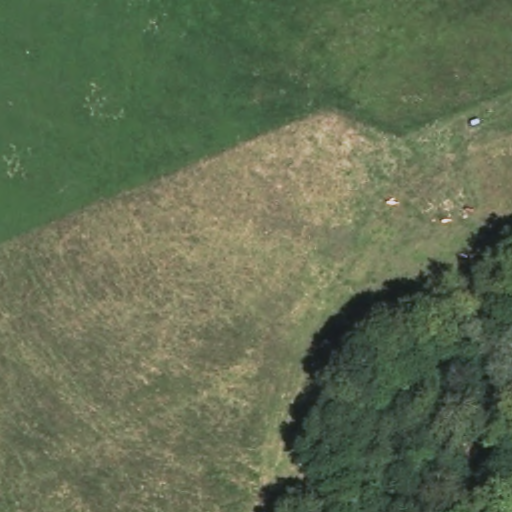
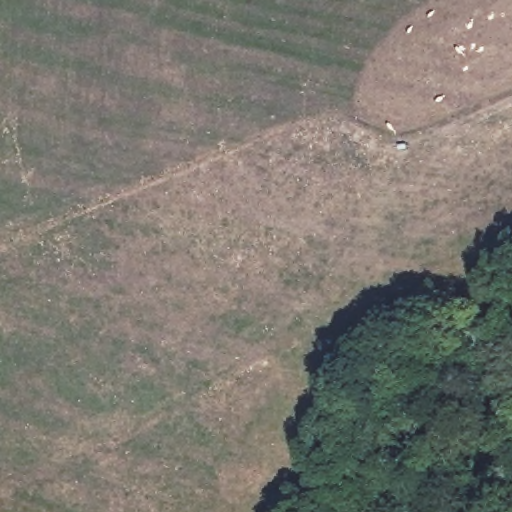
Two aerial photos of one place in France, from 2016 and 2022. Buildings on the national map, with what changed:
[]

